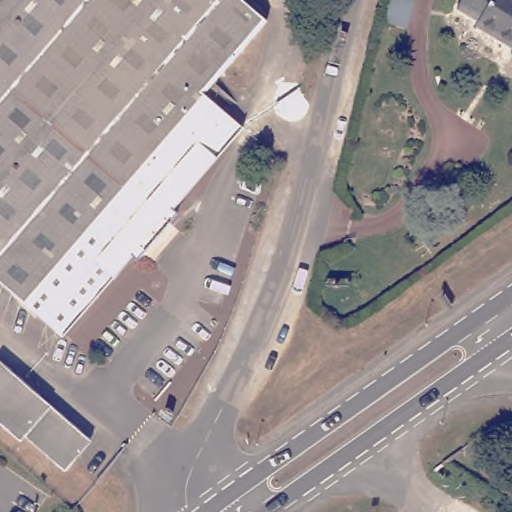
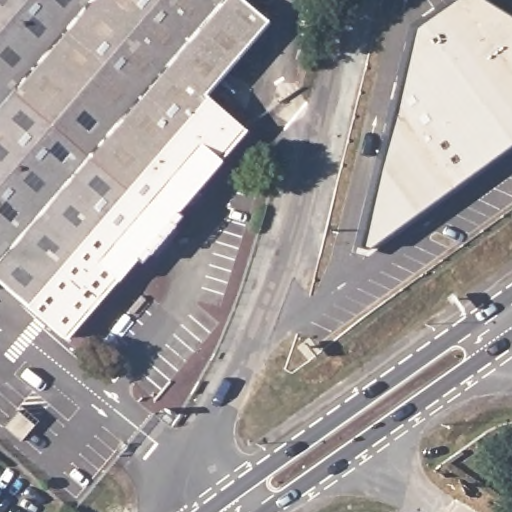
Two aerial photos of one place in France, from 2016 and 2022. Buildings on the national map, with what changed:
unchanged [(224,67),(205,90),(246,126),(66,333),(0,276),(0,0),(144,0),(186,35),(224,67)]
unchanged [(244,0),(265,18),(224,67),(186,35),(144,0),(244,0)]
new [(486,0),(512,16),(512,140),(364,248),(354,245),(409,25),(443,0),(486,0)]
demolished [(511,51),(475,28),(477,24),(457,11),(463,0),(512,0),(512,50),(511,51)]
demolished [(0,368),(90,445),(64,475),(24,440),(21,444),(0,426),(0,368)]

